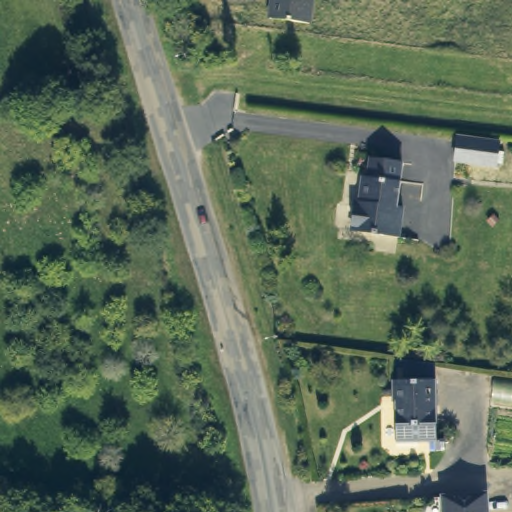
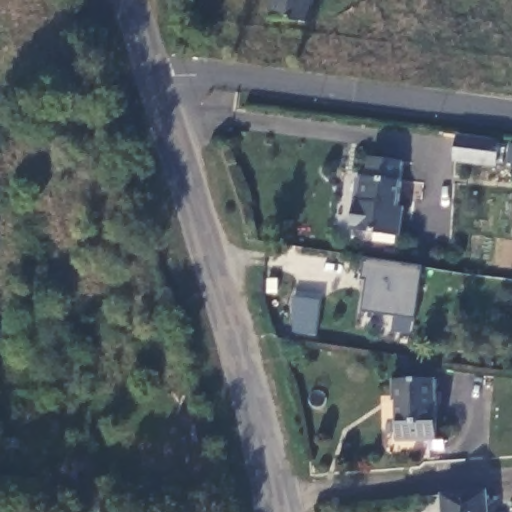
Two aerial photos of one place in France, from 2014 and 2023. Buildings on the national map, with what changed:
unchanged [(314,0),(311,26),(271,21),(274,0),(314,0)]
unchanged [(464,139),(506,145),(503,168),(460,162),(464,139)]
unchanged [(366,164),(397,169),(395,188),(396,189),(394,206),(399,207),(393,246),(346,240),(350,216),(355,208),(359,184),(364,184),(366,164)]
new [(413,320),(362,313),(366,281),(360,280),(364,259),(422,266),(413,320)]
unchanged [(430,375),(432,433),(440,433),(440,445),(425,445),(425,436),(392,437),(389,375),(430,375)]
unchanged [(446,505),(486,500),(487,512),(446,512),(446,505)]

